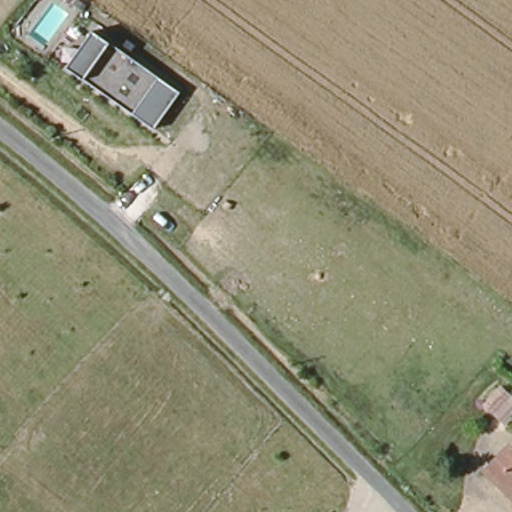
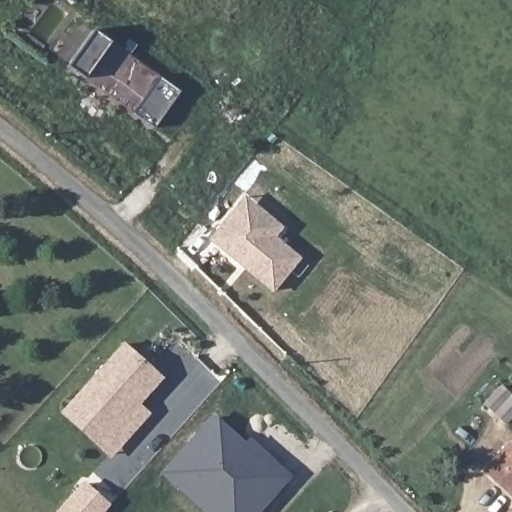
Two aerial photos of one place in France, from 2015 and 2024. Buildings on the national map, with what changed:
unchanged [(154,126),(69,69),(94,32),(179,92),(154,126)]
new [(280,229),(272,239),(248,219),(239,230),(228,221),(244,200),(280,229)]
new [(239,230),(248,219),(298,258),(272,290),(211,241),(228,221),(239,230)]
new [(140,418),(120,440),(109,430),(115,423),(79,391),(125,340),(162,373),(138,400),(148,408),(140,418)]
unchanged [(506,423),(492,410),(486,403),(502,385),(508,391),(512,395),(512,417),(506,423)]
new [(79,391),(115,423),(109,430),(120,440),(111,450),(64,408),(79,391)]
new [(291,475),(258,512),(203,512),(159,472),(212,412),(245,441),(250,437),(291,475)]
unchanged [(512,451),(512,499),(487,474),(511,450),(512,451)]
new [(84,483),(108,505),(102,512),(61,512),(60,511),(84,483)]

